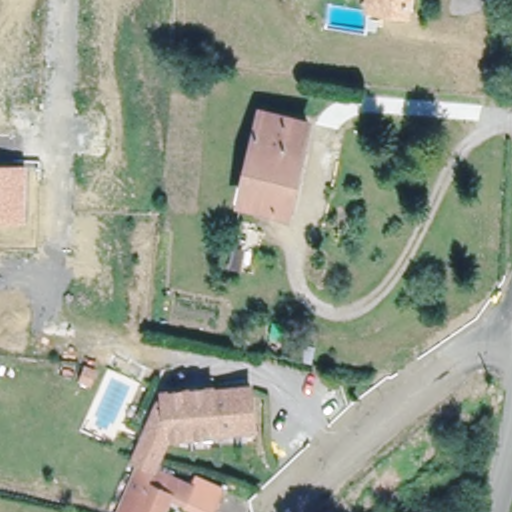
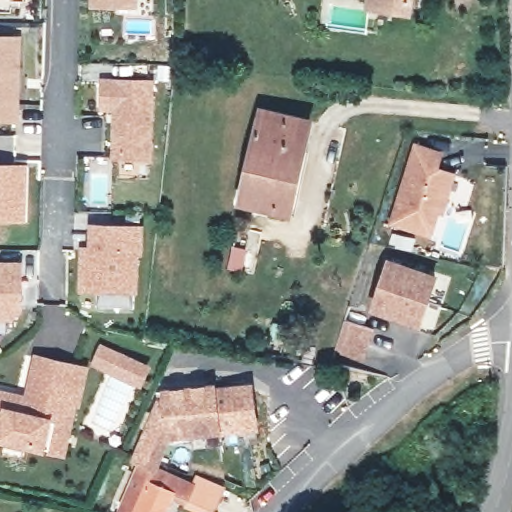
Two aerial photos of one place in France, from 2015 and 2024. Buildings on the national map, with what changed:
new [(91,7),(91,0),(139,0),(139,7),(91,7)]
unchanged [(416,0),(415,15),(366,9),(367,0),(416,0)]
new [(19,120),(0,120),(0,38),(21,39),(19,120)]
new [(104,81),(153,84),(149,160),(119,159),(121,112),(113,101),(103,101),(104,81)]
unchanged [(244,199),(262,114),(311,124),(292,210),(261,202),(244,199)]
new [(445,151),(440,167),(458,172),(444,215),(439,213),(432,236),(389,223),(415,142),(445,151)]
unchanged [(29,223),(0,222),(0,165),(29,164),(29,223)]
new [(145,223),(145,254),(140,257),(139,292),(78,291),(79,246),(89,246),(89,223),(145,223)]
new [(438,275),(422,327),(369,311),(386,258),(438,275)]
new [(14,322),(0,322),(0,260),(24,260),(24,311),(14,322)]
new [(376,330),(366,361),(334,353),(344,320),(376,330)]
new [(135,380),(101,367),(89,362),(95,346),(108,351),(141,363),(135,380)]
new [(82,407),(76,406),(66,457),(46,452),(0,442),(0,389),(25,395),(33,353),(91,365),(82,407)]
demolished [(89,370),(83,381),(75,376),(81,365),(89,370)]
unchanged [(139,465),(133,462),(156,403),(161,399),(161,395),(248,386),(253,425),(166,438),(154,470),(191,485),(194,477),(200,480),(224,489),(215,512),(211,512),(191,504),(186,502),(186,501),(178,497),(172,495),(165,512),(120,512),(139,465)]

